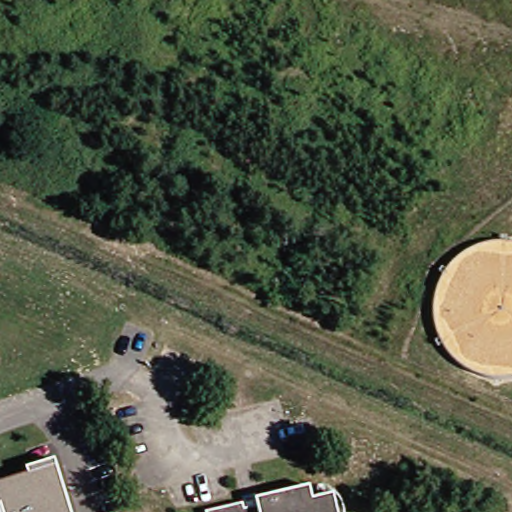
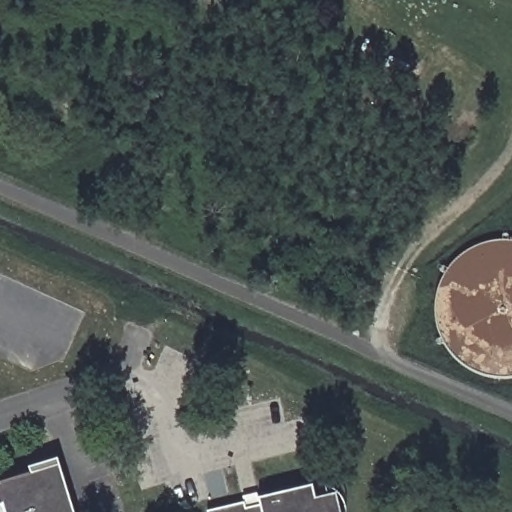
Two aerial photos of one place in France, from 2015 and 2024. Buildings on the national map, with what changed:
unchanged [(2,485),(34,470),(34,465),(63,456),(78,512),(0,512),(0,506),(5,502),(2,485)]
unchanged [(252,500),(307,486),(310,500),(330,495),(335,512),(203,512),(239,503),(252,500)]

